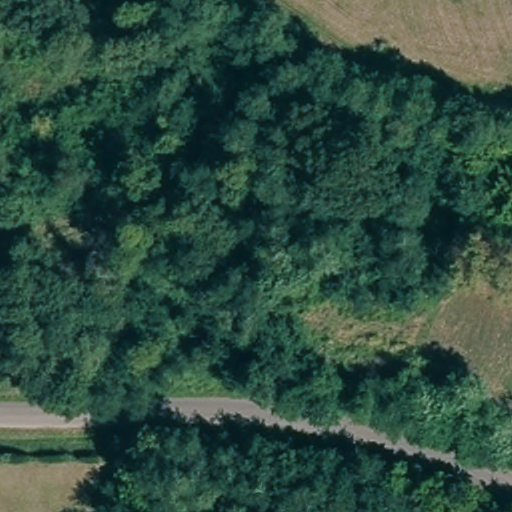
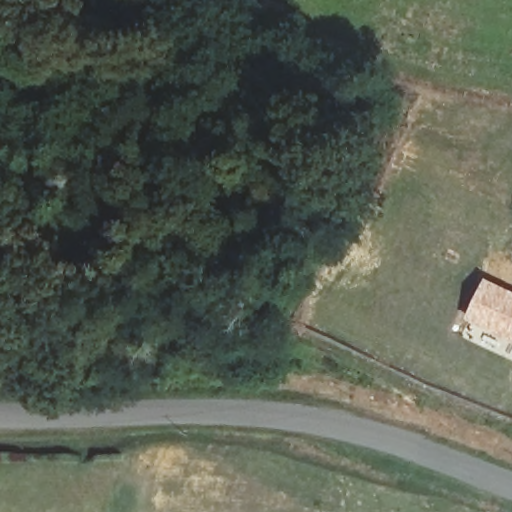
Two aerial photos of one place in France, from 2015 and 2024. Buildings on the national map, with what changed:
new [(466,318),(487,277),(512,290),(512,340),(466,318)]

